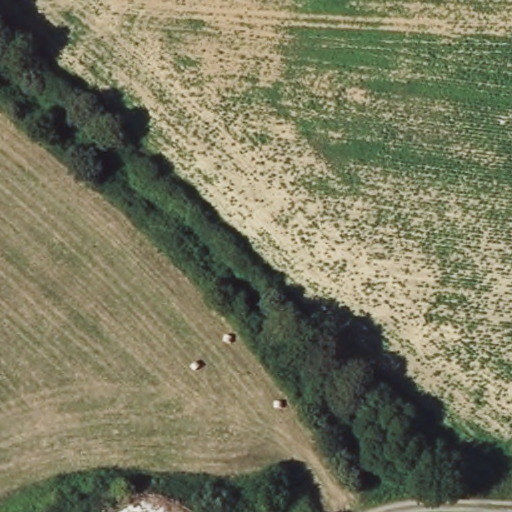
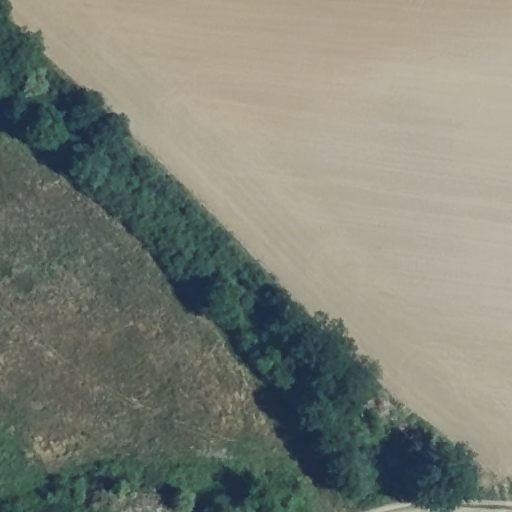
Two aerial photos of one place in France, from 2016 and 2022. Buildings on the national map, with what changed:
unchanged [(244,512),(242,512),(242,511),(244,512)]

